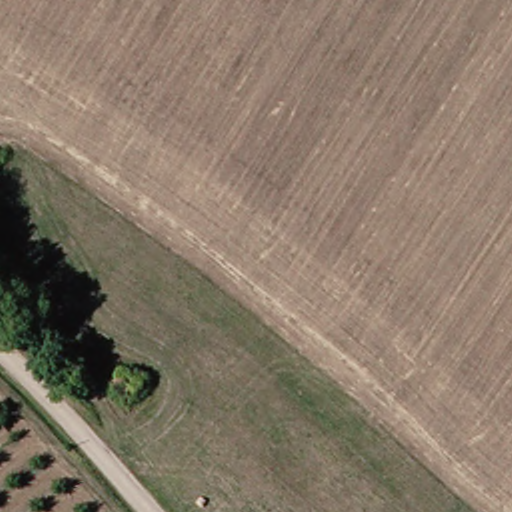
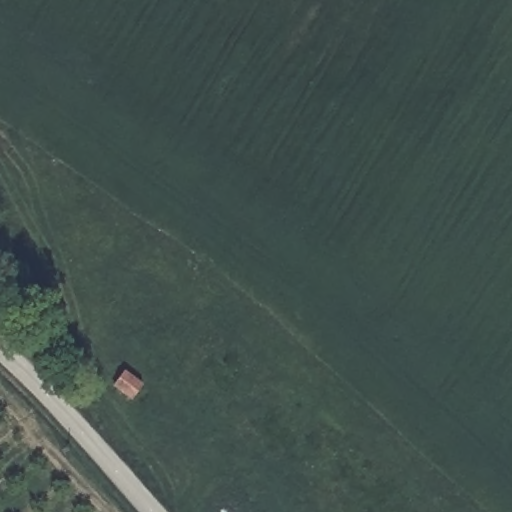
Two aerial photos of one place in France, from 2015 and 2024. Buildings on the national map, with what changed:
unchanged [(138,396),(139,396),(133,404),(131,403),(118,393),(122,383),(138,396)]

